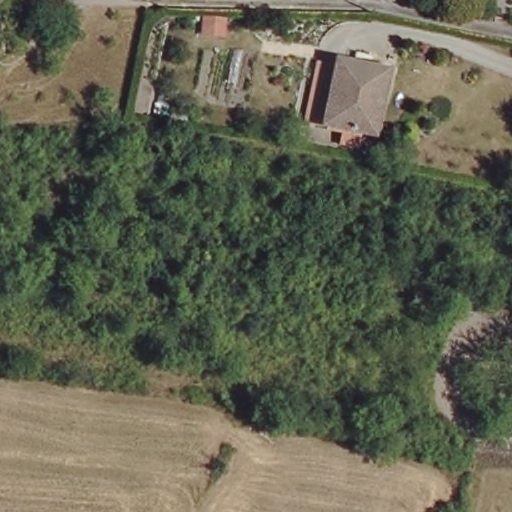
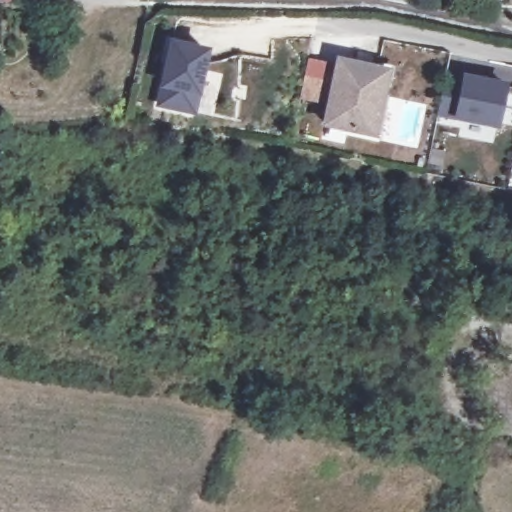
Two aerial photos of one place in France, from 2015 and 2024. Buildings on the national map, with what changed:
new [(173,44),(207,51),(194,112),(160,105),(173,44)]
unchanged [(392,70),(390,82),(380,134),(331,124),(315,120),(326,64),(343,67),(344,60),(375,67),(392,70)]
new [(444,76),(464,81),(465,77),(505,85),(496,125),(437,113),(444,76)]

